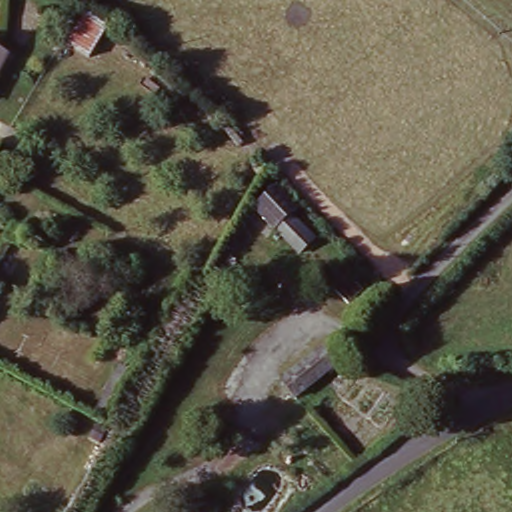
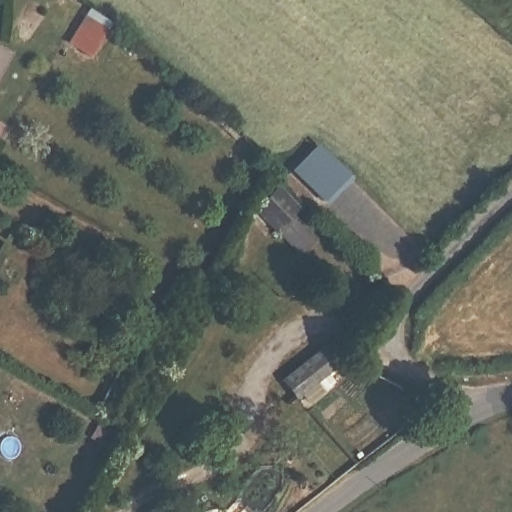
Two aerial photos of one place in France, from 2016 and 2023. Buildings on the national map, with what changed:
unchanged [(81,22),(104,35),(88,60),(67,46),(81,22)]
unchanged [(0,74),(0,54),(8,58),(0,74)]
new [(317,145),(346,176),(321,200),(292,170),(317,145)]
unchanged [(292,264),(269,240),(263,244),(244,220),(279,191),(299,213),(320,239),(309,248),(292,264)]
unchanged [(280,385),(314,351),(328,366),(298,401),(280,385)]
unchanged [(119,368),(136,377),(114,417),(121,421),(116,430),(93,416),(119,368)]

